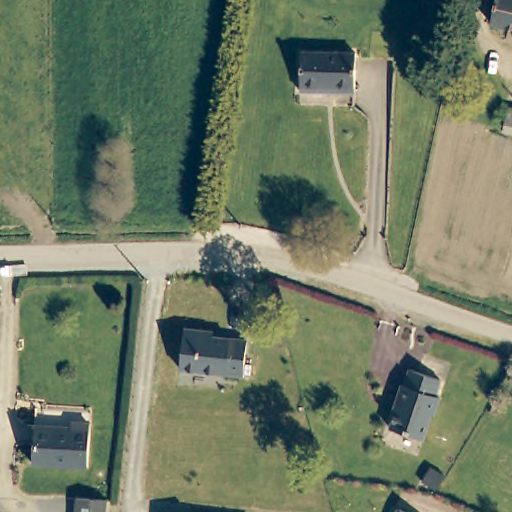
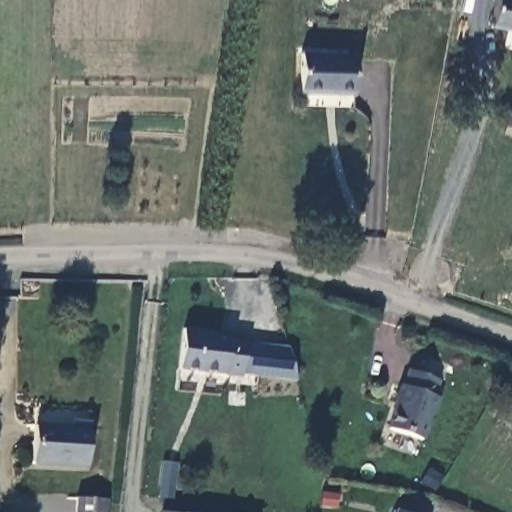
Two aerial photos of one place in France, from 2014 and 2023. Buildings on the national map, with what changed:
unchanged [(499,0),(512,0),(512,31),(494,27),(499,0)]
unchanged [(301,48),(355,50),(353,91),(299,88),(301,48)]
unchanged [(503,113),(512,115),(512,132),(500,130),(503,113)]
unchanged [(182,329),(204,331),(204,336),(244,341),(240,377),(177,370),(182,329)]
new [(240,377),(244,341),(288,347),(297,380),(240,377)]
unchanged [(400,403),(397,402),(405,385),(407,386),(413,370),(443,383),(436,398),(441,401),(435,417),(433,416),(423,441),(390,427),(400,403)]
unchanged [(91,471),(33,468),(35,432),(73,434),(73,430),(92,430),(91,471)]
unchanged [(104,500),(103,512),(73,512),(75,498),(104,500)]
unchanged [(404,512),(403,512),(404,511),(404,512)]

